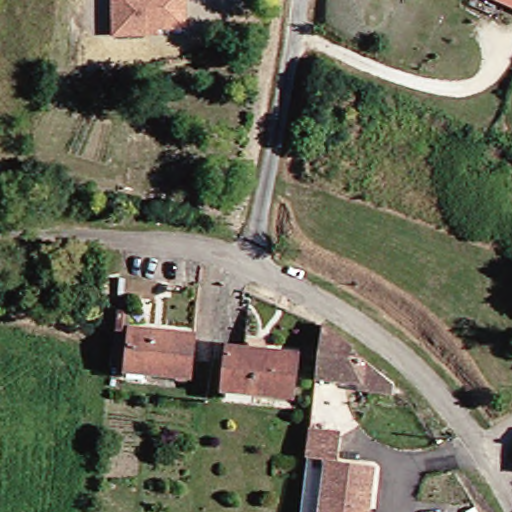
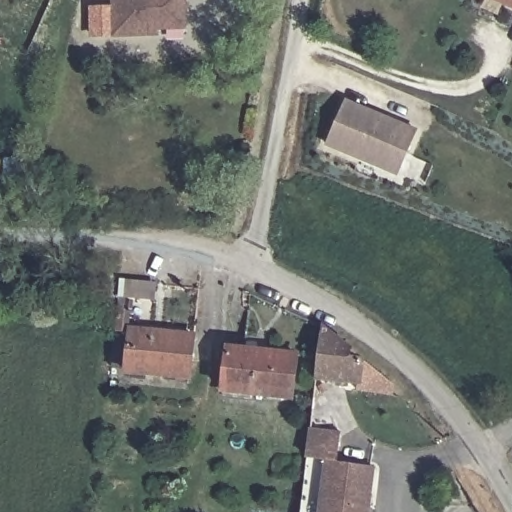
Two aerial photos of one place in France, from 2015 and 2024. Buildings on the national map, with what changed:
unchanged [(145,26),(145,31),(112,32),(113,0),(183,0),(182,9),(182,26),(164,26),(145,26)]
unchanged [(512,0),(512,12),(484,0),(512,0)]
new [(418,129),(399,177),(326,146),(345,98),(418,129)]
unchanged [(196,377),(132,369),(136,325),(200,333),(196,377)]
unchanged [(401,390),(365,389),(365,383),(321,382),(326,331),(402,376),(401,390)]
unchanged [(301,352),(297,392),(232,387),(238,346),(301,352)]
unchanged [(305,457),(308,429),(340,432),(337,459),(374,468),(369,512),(318,512),(324,461),(305,457)]

